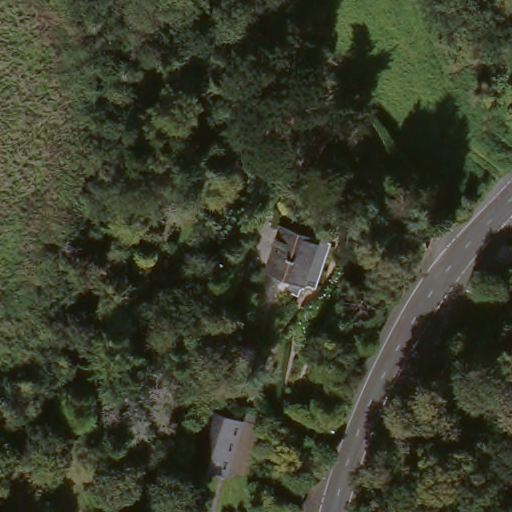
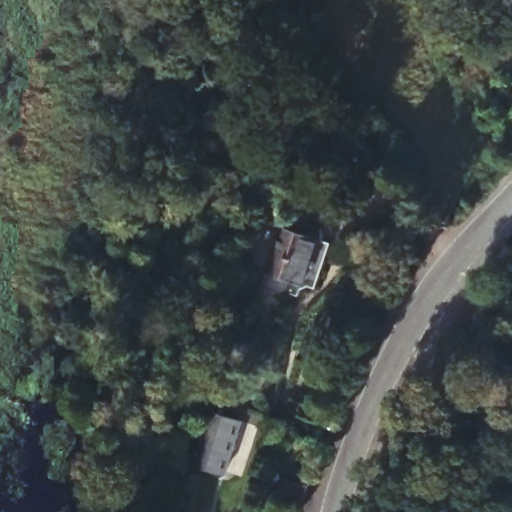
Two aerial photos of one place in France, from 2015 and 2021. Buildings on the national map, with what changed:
unchanged [(361,191),(358,184),(346,161),(360,152),(368,166),(376,183),(361,191)]
unchanged [(258,275),(275,233),(308,245),(323,251),(302,293),(286,286),(258,275)]
unchanged [(213,429),(215,421),(241,430),(228,481),(200,475),(188,471),(200,426),(213,429)]
unchanged [(315,488),(309,508),(298,504),(278,498),(285,478),(315,488)]

